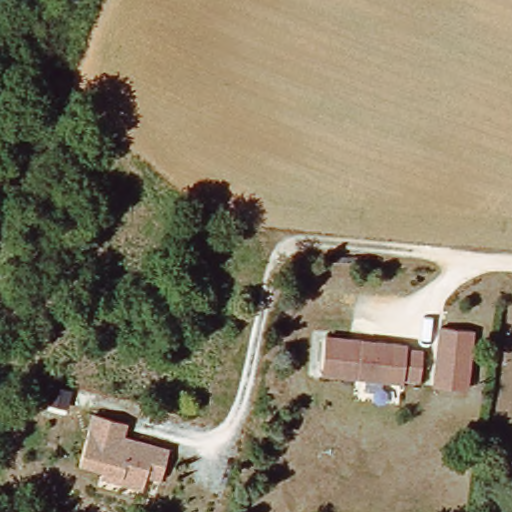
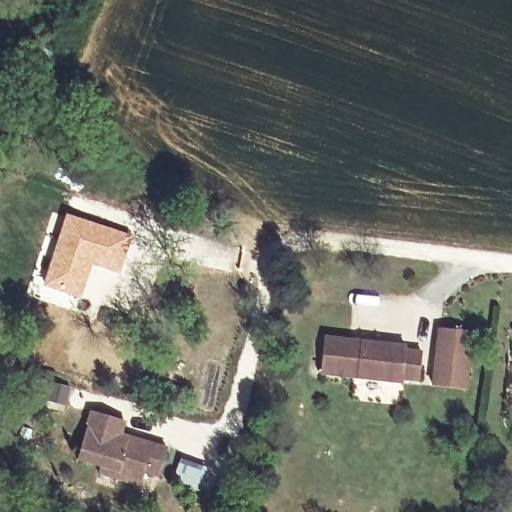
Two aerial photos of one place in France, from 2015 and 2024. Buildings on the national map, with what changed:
new [(65,213),(132,236),(120,274),(92,265),(80,299),(40,285),(65,213)]
new [(440,330),(473,332),(469,390),(435,387),(440,330)]
unchanged [(404,378),(404,382),(323,376),(325,340),(407,346),(407,350),(423,351),(422,379),(404,378)]
unchanged [(77,464),(92,416),(124,424),(120,439),(166,453),(160,481),(144,477),(140,489),(129,486),(100,478),(104,472),(77,464)]

